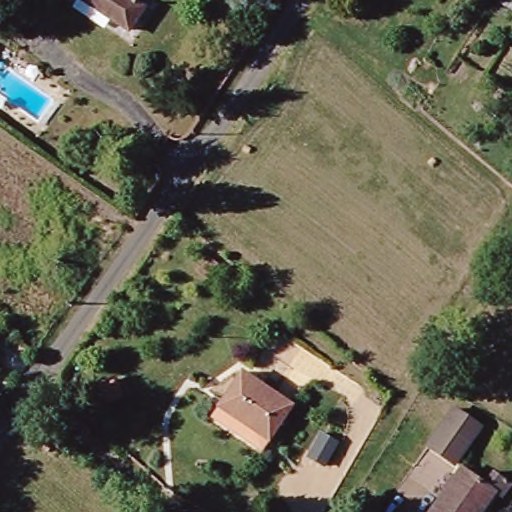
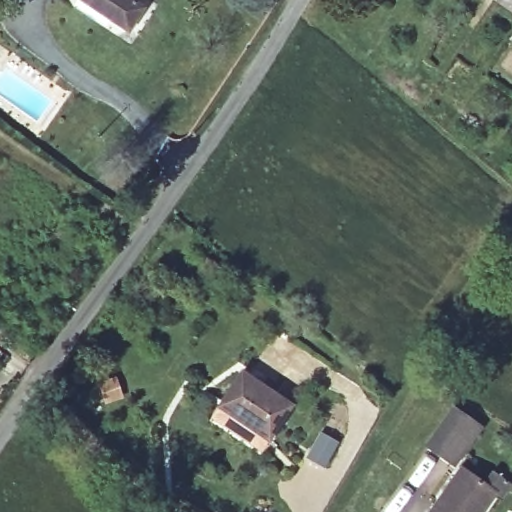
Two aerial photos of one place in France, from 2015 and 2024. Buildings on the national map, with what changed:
unchanged [(123,25),(87,0),(136,0),(139,2),(123,25)]
unchanged [(288,402),(263,440),(212,407),(237,369),(288,402)]
unchanged [(450,458),(422,437),(444,403),(475,423),(450,458)]
unchanged [(458,470),(492,495),(480,512),(427,512),(458,470)]

